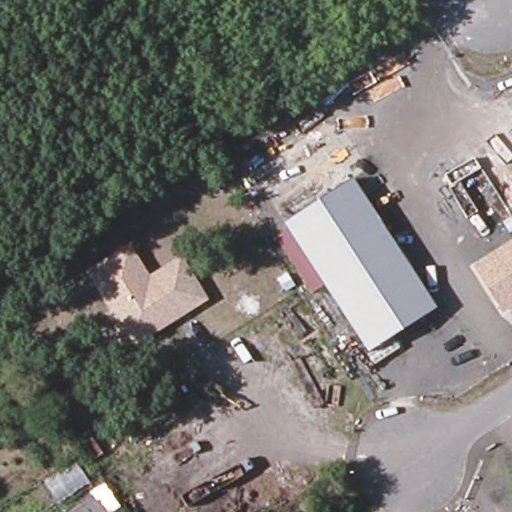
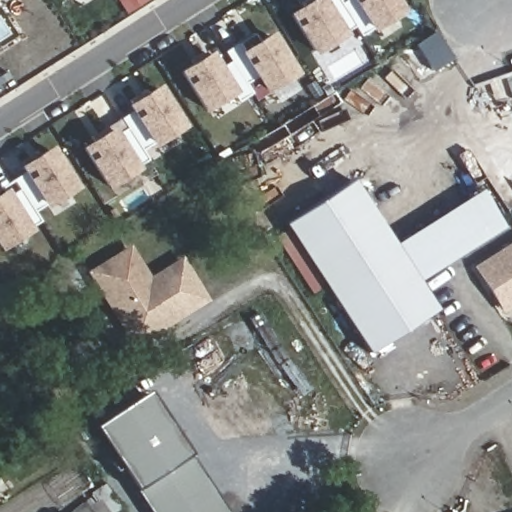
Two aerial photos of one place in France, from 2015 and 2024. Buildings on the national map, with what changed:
new [(302,0),(391,0),(398,11),(358,36),(352,26),(313,51),(290,15),(300,9),(297,3),(302,0)]
new [(189,60),(205,51),(207,55),(216,69),(229,62),(222,52),(236,44),(252,34),(257,44),(242,53),(269,37),(292,74),(265,91),(256,77),(244,85),(250,94),(235,102),(230,93),(204,109),(180,72),(191,65),(189,60)]
new [(146,160),(106,185),(83,149),(110,132),(92,142),(90,137),(119,119),(132,111),(129,106),(155,89),(179,126),(140,150),(146,160)]
new [(142,92),(145,96),(129,106),(126,102),(142,92)]
new [(0,246),(0,194),(2,192),(0,194),(0,187),(11,180),(24,172),(21,167),(49,150),(71,187),(32,212),(39,221),(0,246)]
new [(35,152),(38,157),(21,167),(18,162),(35,152)]
unchanged [(324,287),(313,294),(276,241),(286,232),(281,225),(351,177),(436,309),(367,351),(324,287)]
new [(479,189),(503,227),(418,281),(393,242),(479,189)]
unchanged [(512,242),(512,306),(500,314),(471,267),(512,242)]
unchanged [(134,348),(87,271),(130,245),(149,276),(182,257),(210,302),(134,348)]
new [(133,489),(91,426),(146,389),(189,455),(226,512),(148,512),(133,489)]
unchanged [(63,512),(31,512),(25,503),(76,465),(92,493),(63,512)]
unchanged [(92,493),(103,487),(121,512),(63,512),(92,493)]

